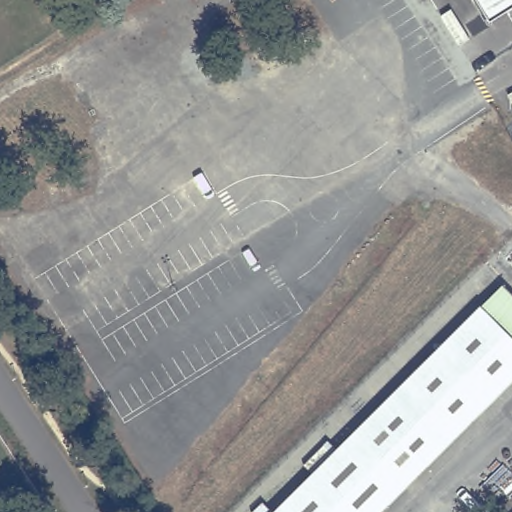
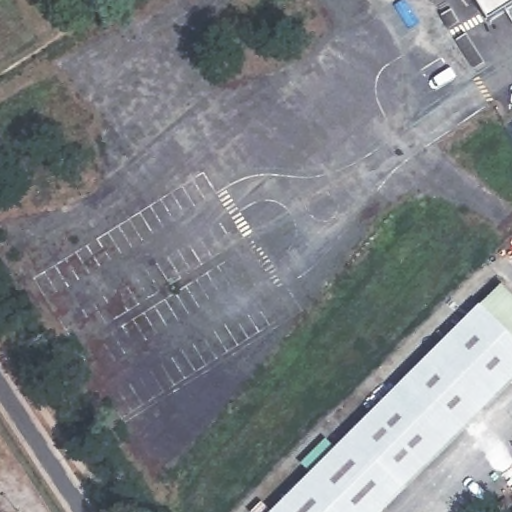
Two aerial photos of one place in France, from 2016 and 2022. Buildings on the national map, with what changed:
unchanged [(506,13),(489,24),(474,0),(512,0),(512,22),(506,13)]
unchanged [(512,295),(512,340),(483,310),(503,287),(512,295)]
unchanged [(512,340),(512,389),(385,512),(278,512),(483,310),(512,340)]

